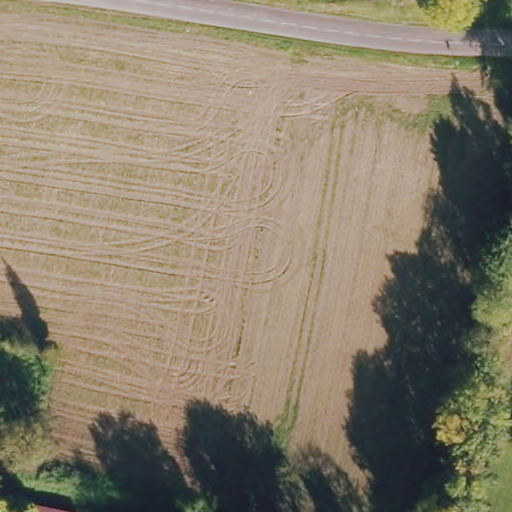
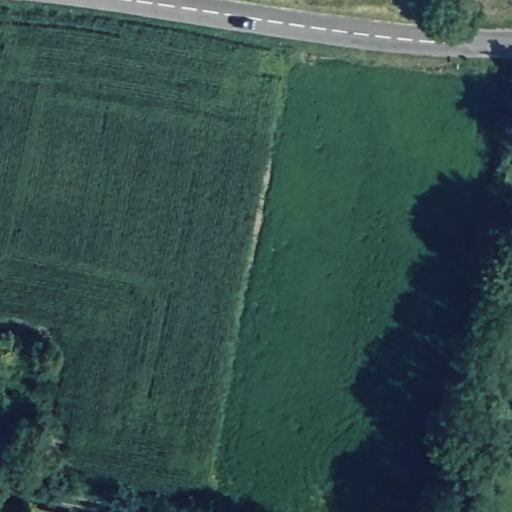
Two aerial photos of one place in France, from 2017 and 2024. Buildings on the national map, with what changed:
unchanged [(27,512),(28,504),(75,512),(27,512)]

